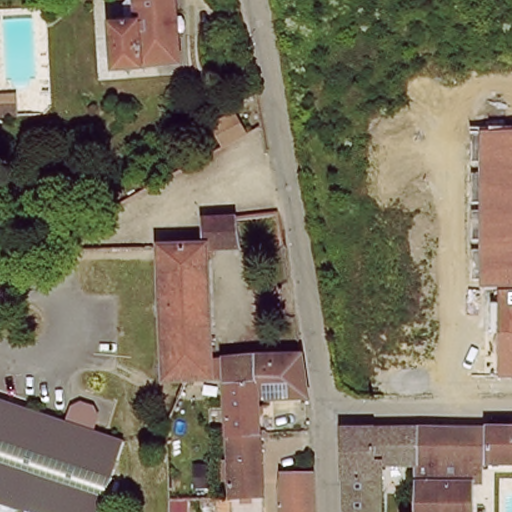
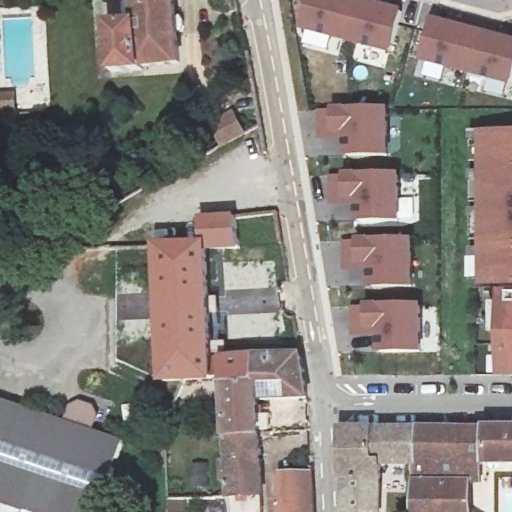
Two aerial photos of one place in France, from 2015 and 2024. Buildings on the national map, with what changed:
unchanged [(147,67),(146,72),(118,77),(110,28),(138,22),(135,0),(177,0),(182,61),(147,67)]
new [(385,56),(298,37),(305,0),(344,0),(395,12),(385,56)]
new [(512,64),(507,86),(415,66),(426,21),(512,43),(512,64)]
new [(344,157),(345,142),(320,144),(319,114),(334,114),(334,107),(390,109),(390,157),(344,157)]
unchanged [(500,288),(480,289),(480,280),(473,280),(472,131),(512,131),(512,380),(501,380),(500,288)]
demolished [(268,159),(275,218),(246,221),(229,165),(268,159)]
new [(345,180),(346,174),(403,176),(403,224),(357,225),(359,207),(330,207),(330,178),(345,180)]
unchanged [(237,214),(243,245),(210,249),(207,220),(237,214)]
new [(358,246),(359,239),(415,240),(414,289),(369,290),(370,274),(345,275),(345,245),(358,246)]
unchanged [(210,249),(212,361),(256,356),(259,382),(228,385),(228,381),(186,383),(161,385),(161,251),(163,251),(210,249)]
new [(367,311),(366,305),(424,306),(424,354),(377,353),(377,339),(353,340),(353,310),(367,311)]
unchanged [(299,350),(301,363),(304,392),(290,393),(260,396),(259,382),(256,356),(299,350)]
demolished [(229,406),(177,407),(186,383),(228,381),(228,385),(229,406)]
unchanged [(232,438),(229,406),(228,385),(259,382),(260,396),(263,435),(232,438)]
unchanged [(103,462),(87,512),(0,512),(0,426),(103,462)]
unchanged [(413,466),(381,465),(381,512),(345,512),(345,428),(415,427),(413,466)]
unchanged [(415,427),(437,427),(437,512),(412,512),(413,466),(415,427)]
unchanged [(512,427),(512,463),(472,465),(471,512),(437,512),(437,427),(512,427)]
unchanged [(263,435),(267,498),(237,501),(232,438),(263,435)]
unchanged [(282,503),(309,501),(309,512),(282,512),(282,503)]

